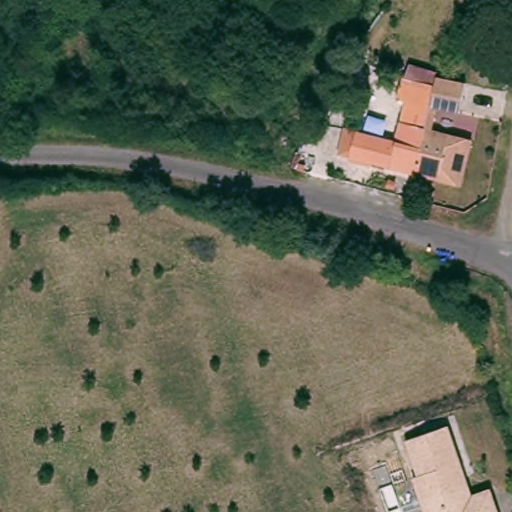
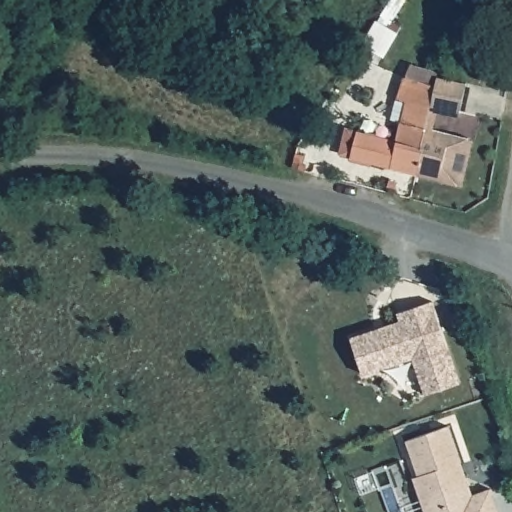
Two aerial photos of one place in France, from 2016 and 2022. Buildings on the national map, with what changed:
unchanged [(405,77),(408,65),(436,72),(433,85),(426,106),(396,98),(405,77)]
unchanged [(436,76),(466,82),(459,112),(430,106),(433,85),(436,76)]
unchanged [(342,141),(345,128),(396,140),(400,121),(425,127),(421,146),(423,147),(416,174),(350,156),(338,153),(342,141)]
unchanged [(461,185),(456,184),(416,174),(423,147),(421,146),(425,127),(432,129),(467,139),(472,140),(461,185)]
unchanged [(298,162),(306,164),(303,170),(297,169),(298,162)]
new [(382,325),(399,320),(396,312),(431,300),(459,382),(423,393),(412,357),(363,373),(350,336),(376,328),(382,325)]
unchanged [(448,425),(472,494),(490,488),(498,512),(425,512),(411,471),(416,470),(406,440),(448,425)]

